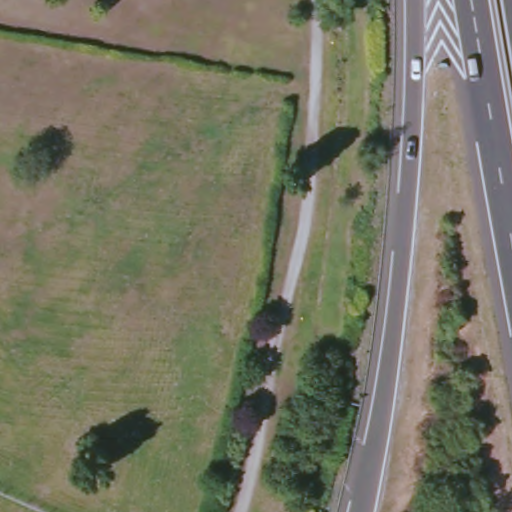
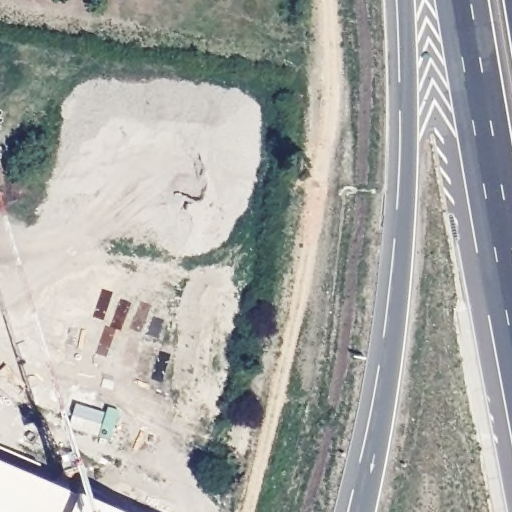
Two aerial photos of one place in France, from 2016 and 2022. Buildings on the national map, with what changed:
new [(134,512),(0,512),(0,454),(134,512)]

